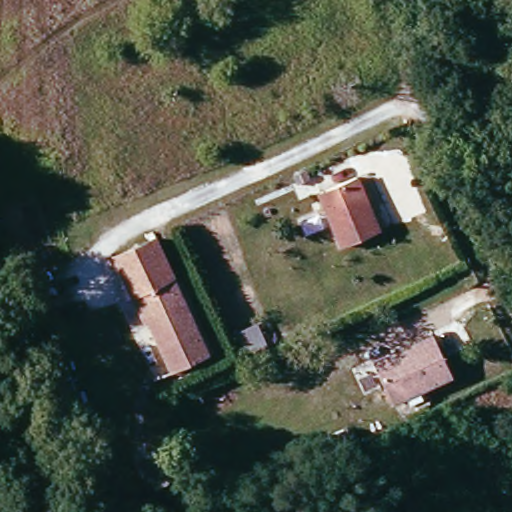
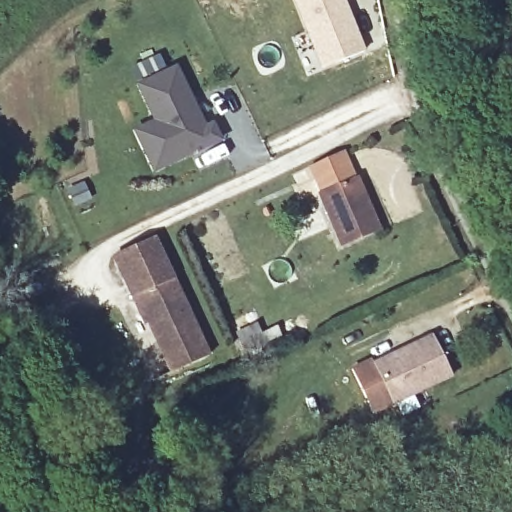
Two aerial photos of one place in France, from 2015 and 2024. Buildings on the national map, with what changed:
new [(321,68),(292,0),(346,0),(366,49),(321,68)]
new [(188,96),(185,99),(200,131),(213,126),(219,141),(154,172),(135,132),(156,123),(140,86),(176,69),(188,96)]
new [(344,149),(357,174),(316,192),(306,166),(344,149)]
unchanged [(377,231),(341,245),(322,192),(358,179),(377,231)]
unchanged [(117,251),(156,234),(176,279),(136,295),(117,251)]
unchanged [(136,295),(176,279),(206,354),(167,370),(136,295)]
unchanged [(456,378),(396,403),(379,363),(439,337),(456,378)]
unchanged [(180,478),(148,494),(130,459),(160,442),(180,478)]

